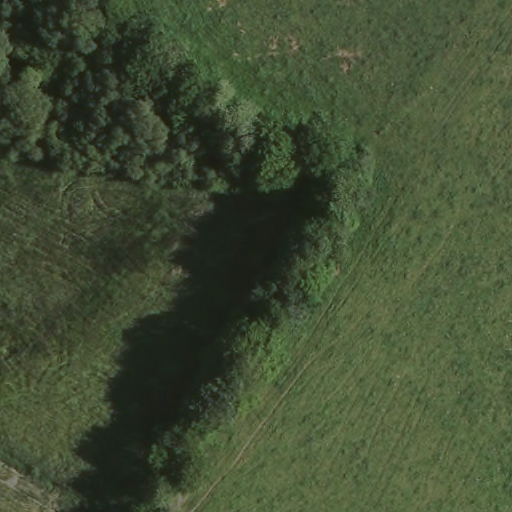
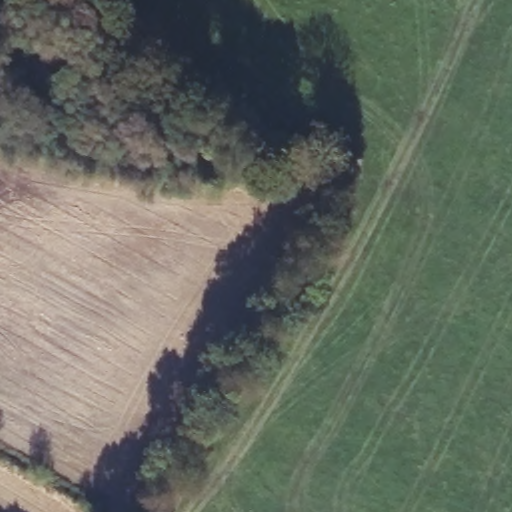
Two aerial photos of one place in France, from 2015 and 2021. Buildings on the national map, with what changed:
[]

